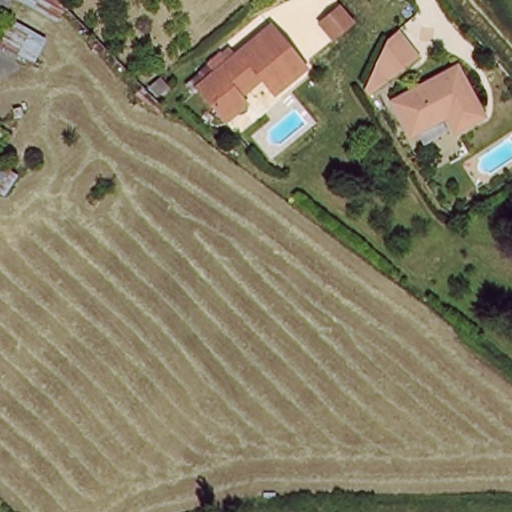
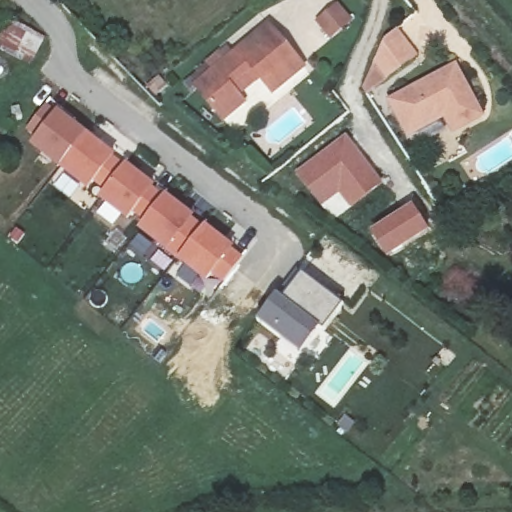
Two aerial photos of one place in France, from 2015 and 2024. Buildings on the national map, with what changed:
demolished [(17,0),(74,0),(37,60),(0,39),(0,30),(17,0)]
unchanged [(344,20),(324,36),(312,20),(331,5),(344,20)]
new [(2,16),(45,38),(30,65),(0,51),(0,20),(2,16)]
unchanged [(238,100),(219,115),(193,82),(208,69),(201,58),(214,48),(222,57),(264,24),(297,63),(266,89),(255,76),(233,94),(238,100)]
unchanged [(401,24),(422,52),(369,88),(364,81),(386,35),(401,24)]
unchanged [(454,129),(446,114),(411,134),(391,100),(455,64),(483,113),(454,129)]
new [(88,132),(196,219),(233,248),(231,251),(243,260),(226,281),(214,272),(207,282),(168,251),(140,230),(145,223),(134,215),(128,222),(101,200),(107,191),(97,182),(90,191),(62,169),(88,132)]
new [(344,132),(383,182),(334,220),(320,207),(292,172),(344,132)]
new [(412,204),(429,231),(385,259),(367,232),(412,204)]
new [(279,295),(286,300),(304,275),(344,305),(325,330),(322,328),(303,354),(259,320),(279,295)]

